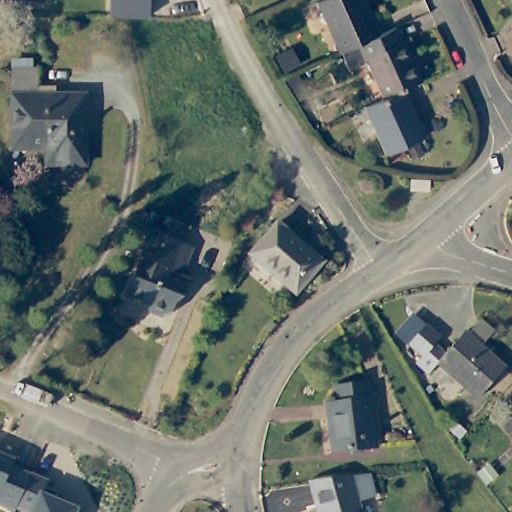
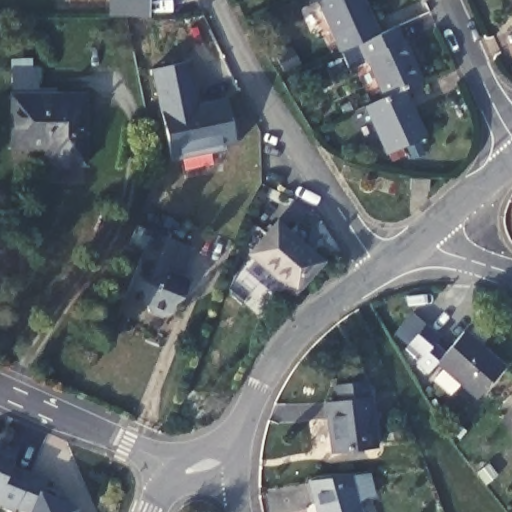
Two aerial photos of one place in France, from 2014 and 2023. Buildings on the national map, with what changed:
unchanged [(316,0),(362,0),(377,31),(340,48),(338,49),(316,0)]
new [(110,1),(149,1),(148,16),(109,16),(110,1)]
unchanged [(367,113),(362,103),(383,94),(367,57),(348,65),(340,48),(377,31),(394,24),(400,37),(402,37),(420,76),(401,86),(405,95),(422,133),(383,150),(367,113)]
new [(189,62),(197,102),(227,98),(235,145),(171,158),(161,112),(158,112),(150,69),(189,62)]
unchanged [(85,170),(45,170),(45,153),(11,153),(10,99),(10,79),(39,78),(40,99),(85,99),(85,170)]
unchanged [(396,190),(385,184),(390,175),(401,180),(396,190)]
unchanged [(274,221),(320,260),(296,290),(249,251),(274,221)]
unchanged [(196,252),(185,282),(194,284),(188,302),(185,303),(179,306),(175,313),(174,320),(165,322),(151,317),(150,309),(128,301),(146,256),(133,251),(141,230),(196,252)]
unchanged [(462,330),(503,366),(477,396),(437,362),(428,373),(415,361),(419,355),(405,344),(424,322),(437,334),(432,340),(445,350),(462,330)]
unchanged [(362,380),(364,395),(368,395),(374,446),(331,451),(325,400),(335,399),(334,384),(362,380)]
unchanged [(10,465),(30,473),(15,507),(14,509),(0,504),(0,440),(18,448),(10,465)]
unchanged [(47,480),(45,486),(57,492),(54,498),(71,506),(73,512),(26,512),(15,507),(30,473),(30,472),(47,480)]
unchanged [(355,512),(313,512),(305,479),(323,477),(362,473),(369,497),(352,501),(355,512)]

